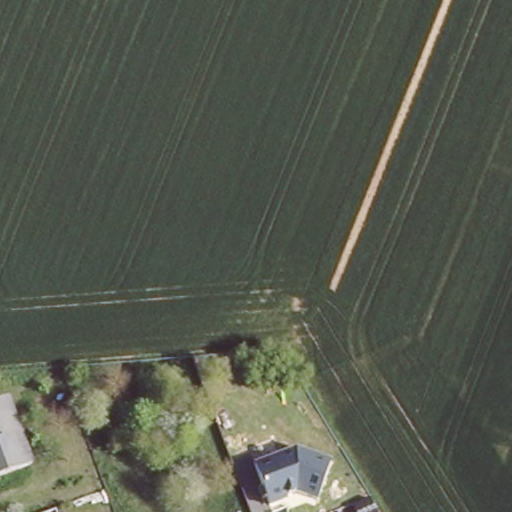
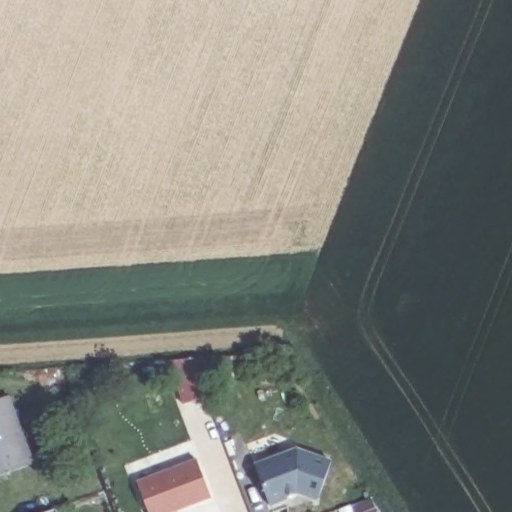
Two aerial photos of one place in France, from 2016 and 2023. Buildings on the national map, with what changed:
new [(193,358),(207,396),(186,404),(170,360),(193,358)]
unchanged [(38,465),(0,479),(0,400),(11,396),(38,465)]
unchanged [(253,463),(296,446),(332,460),(321,500),(299,492),(270,504),(253,463)]
new [(211,498),(172,512),(147,512),(136,481),(197,460),(211,498)]

